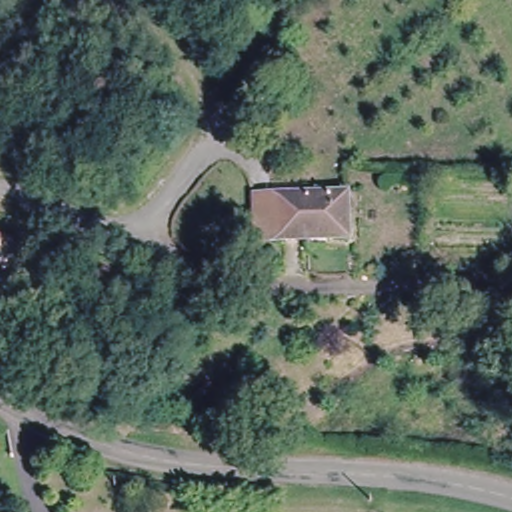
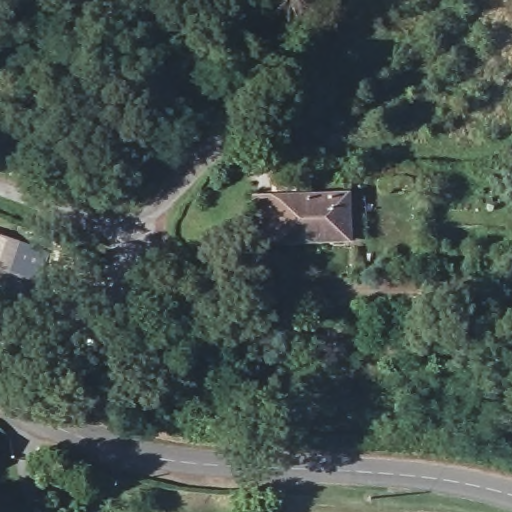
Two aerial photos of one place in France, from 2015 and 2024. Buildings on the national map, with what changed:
unchanged [(268,193),(368,202),(366,246),(263,236),(268,193)]
unchanged [(18,244),(2,292),(0,291),(0,238),(18,244)]
unchanged [(8,449),(0,461),(0,445),(8,449)]

